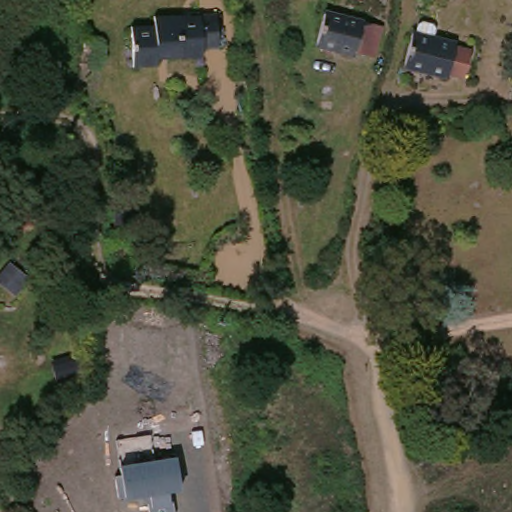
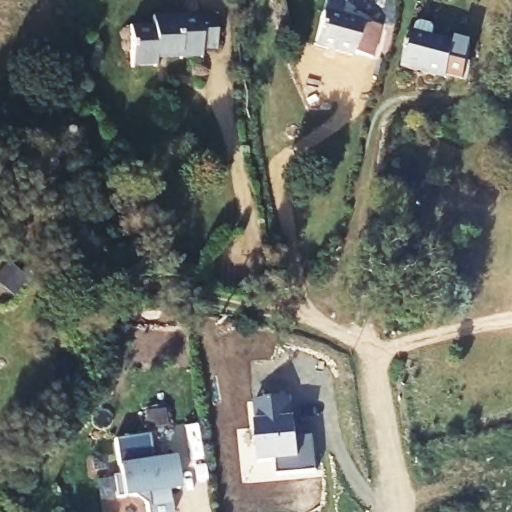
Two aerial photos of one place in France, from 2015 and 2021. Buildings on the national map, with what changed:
unchanged [(308,54),(314,19),(373,28),(368,58),(368,63),(308,54)]
unchanged [(211,57),(196,58),(196,64),(149,65),(150,73),(126,74),(126,72),(122,31),(149,29),(149,25),(210,23),(211,57)]
unchanged [(398,75),(404,44),(443,49),(448,54),(461,56),(458,86),(398,75)]
new [(253,404),(287,401),(289,422),(292,422),(296,422),(297,439),(312,438),(316,473),(274,477),(273,463),(256,464),(252,426),(254,426),(253,404)]
unchanged [(169,492),(173,512),(148,512),(145,496),(118,500),(114,477),(122,475),(120,466),(176,456),(181,489),(169,492)]

